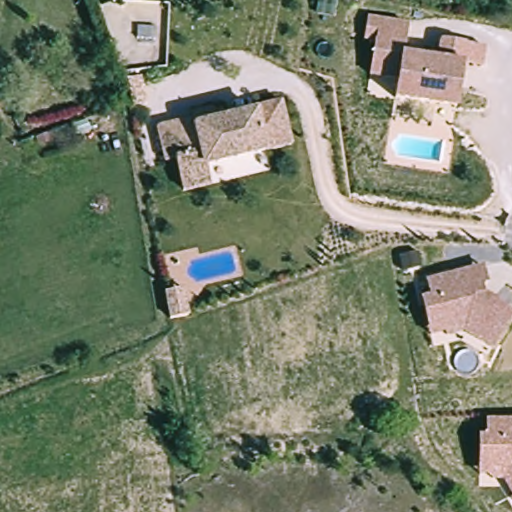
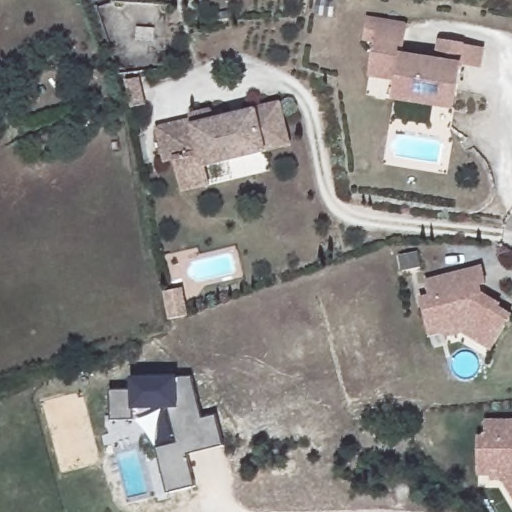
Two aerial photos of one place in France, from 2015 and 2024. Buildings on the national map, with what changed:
unchanged [(394,98),(397,81),(369,76),(375,42),(364,40),(367,17),(407,23),(402,55),(434,60),(438,39),(484,47),(481,68),(461,65),(454,108),(394,98)]
unchanged [(266,152),(206,166),(201,167),(198,150),(173,156),(163,158),(156,129),(190,120),(191,125),(280,103),(288,135),(290,146),(266,152)]
unchanged [(211,185),(181,192),(173,156),(198,150),(201,167),(206,166),(211,185)]
unchanged [(485,292),(502,303),(499,307),(512,316),(512,319),(493,350),(464,333),(426,338),(418,296),(427,294),(423,279),(481,266),(485,292)]
new [(136,383),(136,372),(196,372),(204,414),(173,420),(171,403),(136,402),(136,413),(113,413),(113,383),(136,383)]
new [(164,489),(160,466),(155,443),(177,438),(173,420),(204,414),(218,412),(225,443),(186,450),(188,461),(193,483),(164,489)]
unchanged [(506,477),(478,476),(479,435),(486,435),(486,418),(512,419),(512,490),(506,477)]

